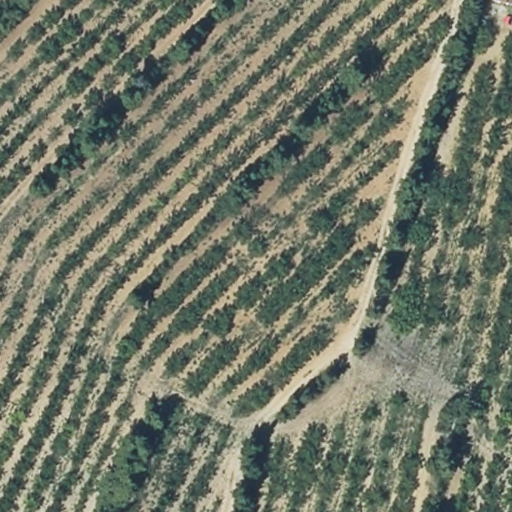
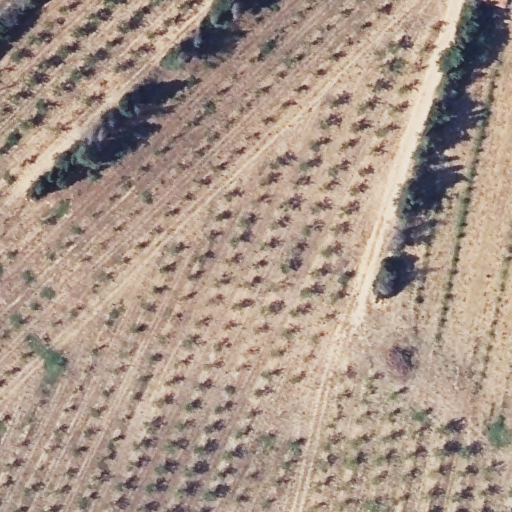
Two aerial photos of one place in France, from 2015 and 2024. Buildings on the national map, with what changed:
unchanged [(509,0),(508,6),(483,0),(509,0)]

